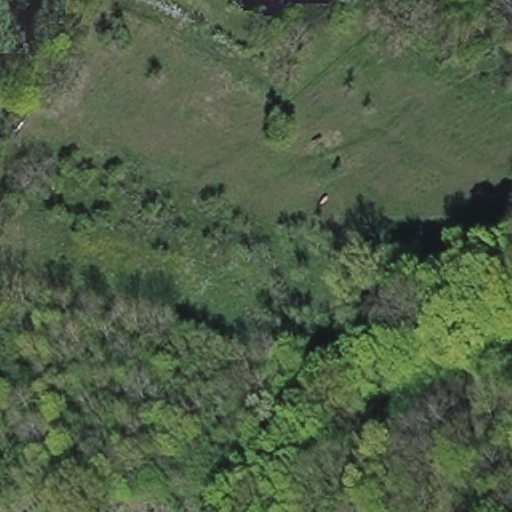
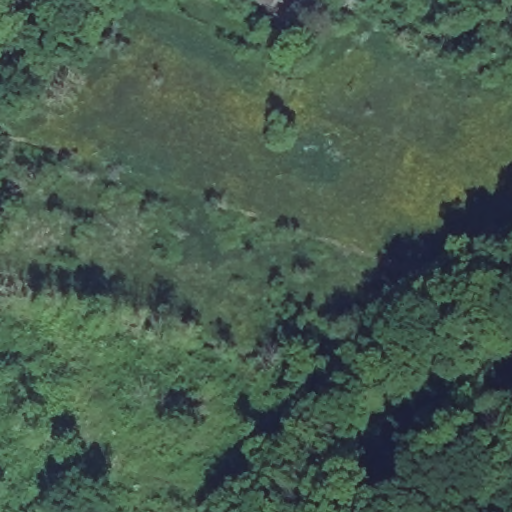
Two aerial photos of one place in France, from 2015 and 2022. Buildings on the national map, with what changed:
unchanged [(276,19),(261,1),(261,0),(300,0),(288,10),(296,20),(285,29),(276,19)]

